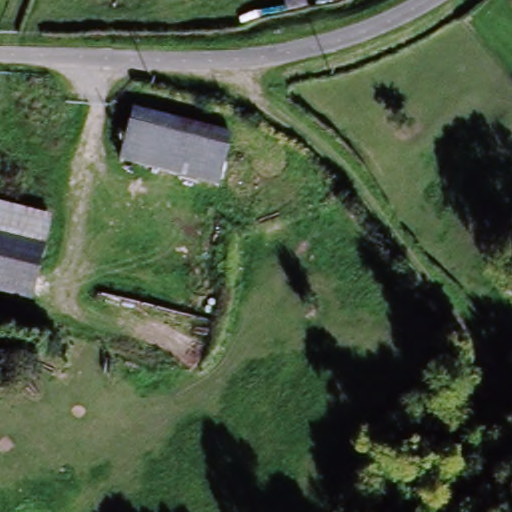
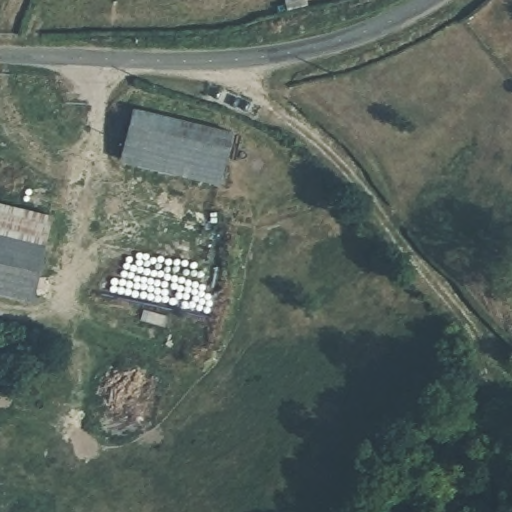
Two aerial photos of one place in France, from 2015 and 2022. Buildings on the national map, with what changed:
unchanged [(220,117),(217,130),(234,134),(223,188),(123,164),(137,99),(220,117)]
unchanged [(30,304),(0,297),(0,208),(50,219),(30,304)]

